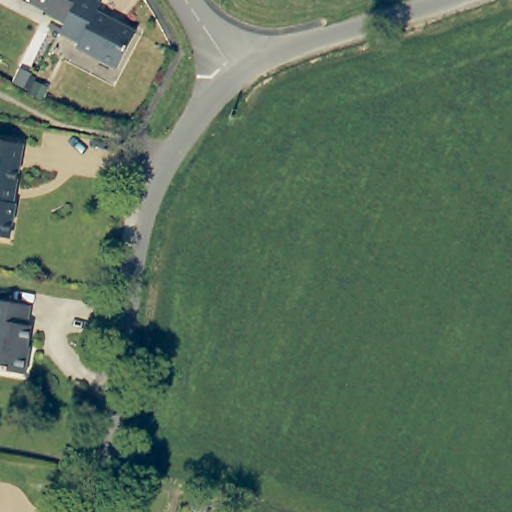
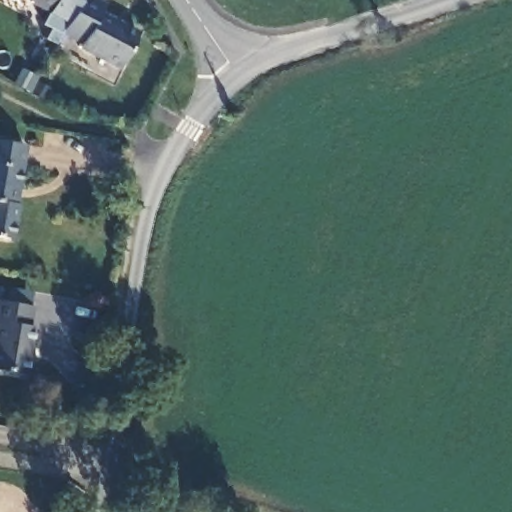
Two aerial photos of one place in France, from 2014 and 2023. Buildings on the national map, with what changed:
unchanged [(26,4),(27,0),(78,0),(64,26),(45,13),(26,4)]
unchanged [(134,36),(116,72),(73,48),(75,44),(59,35),(64,26),(78,0),(90,0),(100,6),(95,15),(134,36)]
unchanged [(0,241),(0,143),(26,148),(14,207),(17,210),(11,244),(0,241)]
unchanged [(29,328),(31,329),(27,355),(30,356),(25,376),(0,371),(0,301),(32,307),(29,328)]

